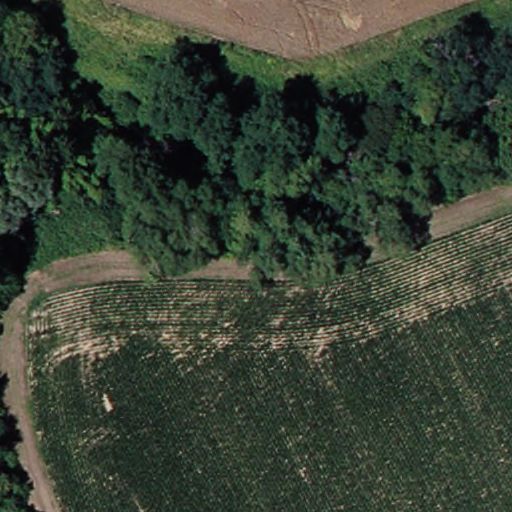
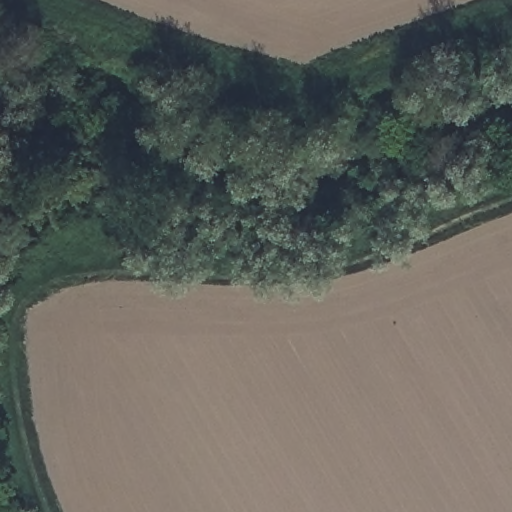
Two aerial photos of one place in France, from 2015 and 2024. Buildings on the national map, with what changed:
[]

